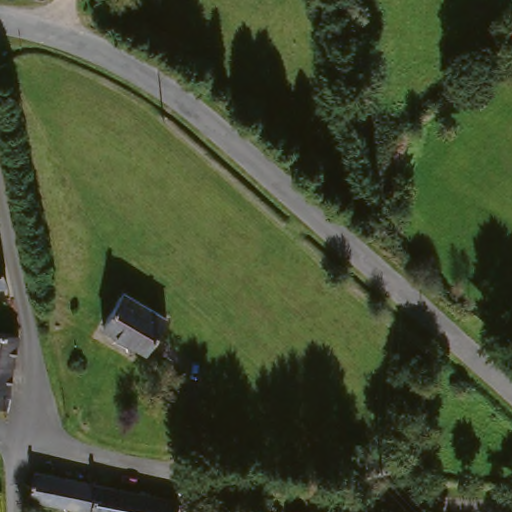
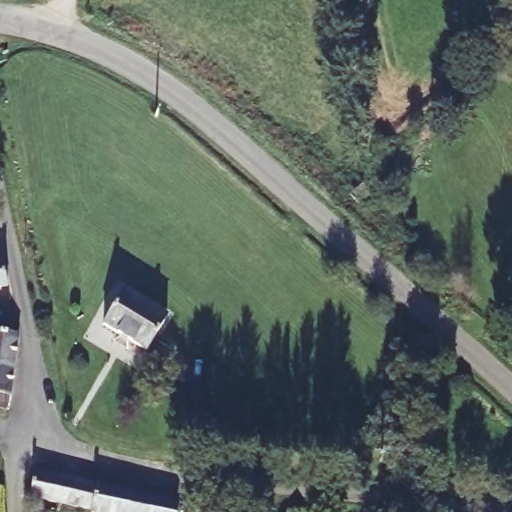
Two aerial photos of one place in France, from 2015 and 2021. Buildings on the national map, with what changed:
unchanged [(10,282),(0,286),(0,257),(10,282)]
unchanged [(104,322),(123,285),(170,310),(150,348),(104,322)]
unchanged [(20,329),(17,358),(12,407),(0,405),(0,328),(20,329)]
unchanged [(183,497),(180,512),(120,512),(62,502),(61,512),(28,506),(37,469),(183,497)]

